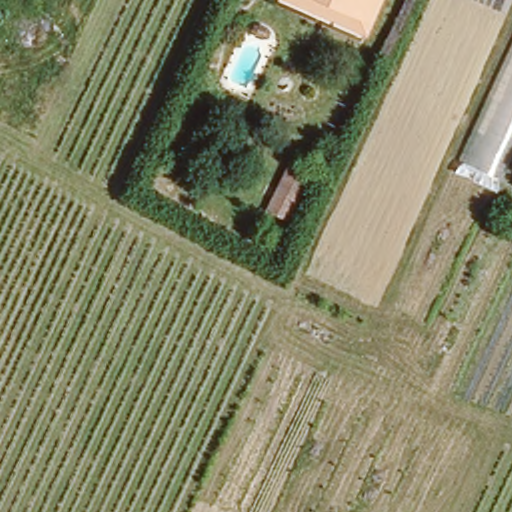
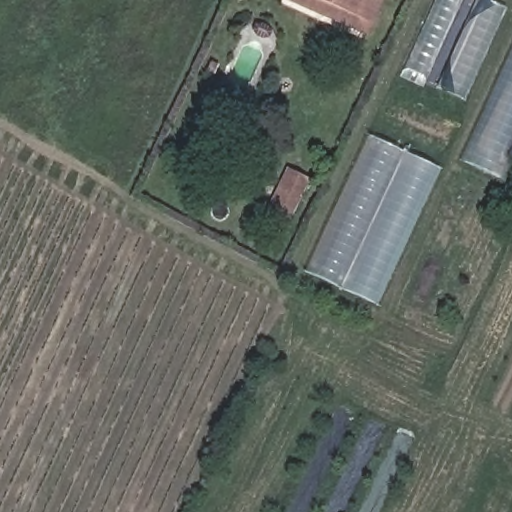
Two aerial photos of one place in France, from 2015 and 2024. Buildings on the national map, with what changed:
unchanged [(370,29),(284,0),(381,0),(370,29)]
new [(435,87),(437,82),(404,66),(432,0),(490,0),(505,7),(463,100),(435,87)]
new [(460,162),(512,42),(512,159),(504,179),(460,162)]
new [(368,135),(405,152),(339,290),(303,271),(368,135)]
new [(340,288),(405,152),(440,169),(376,305),(340,288)]
new [(287,167),(311,179),(290,221),(267,210),(287,167)]

